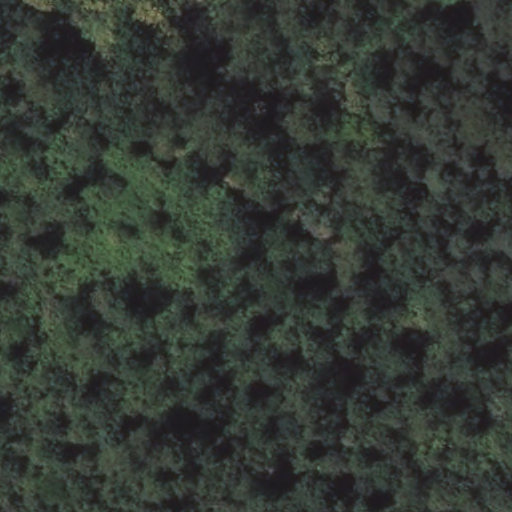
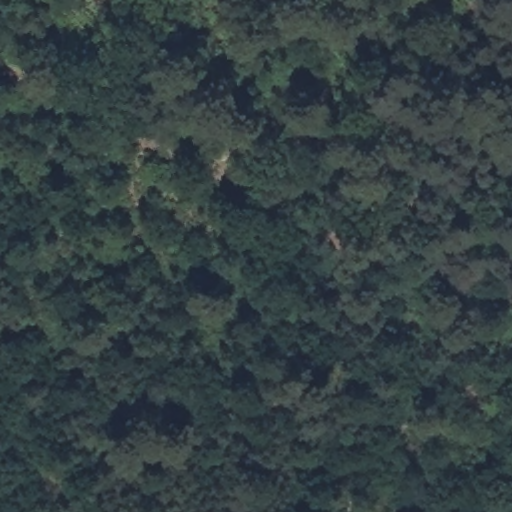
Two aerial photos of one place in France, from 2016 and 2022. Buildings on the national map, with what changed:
[]

